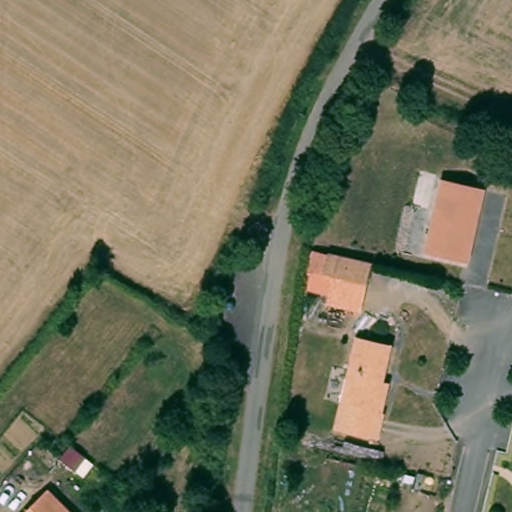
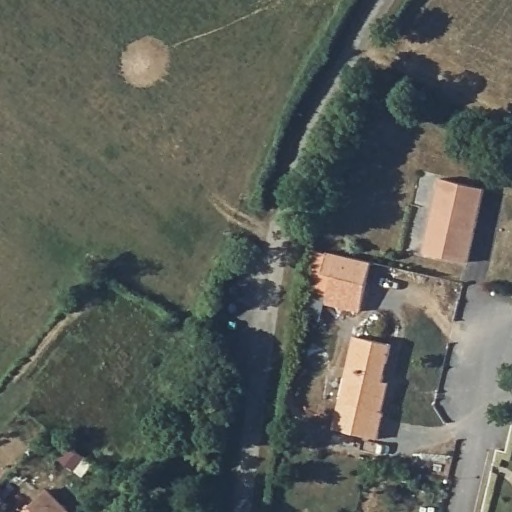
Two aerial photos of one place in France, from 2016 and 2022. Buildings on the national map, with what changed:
unchanged [(481,187),(463,262),(423,254),(440,178),(481,187)]
unchanged [(387,247),(382,269),(338,259),(343,237),(387,247)]
unchanged [(384,409),(379,433),(355,428),(337,424),(342,400),(357,332),(393,341),(385,378),(391,380),(384,409)]
unchanged [(23,512),(42,492),(64,512),(23,512)]

